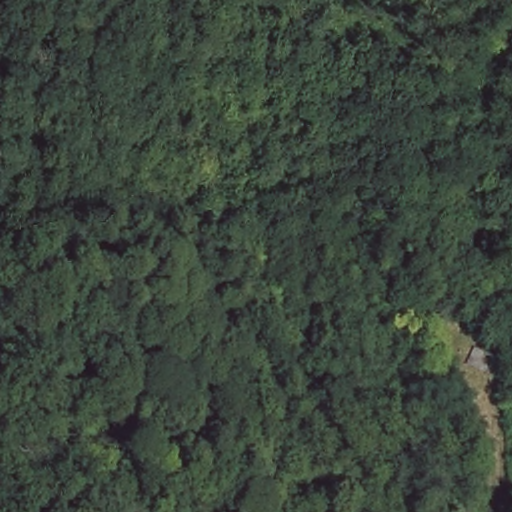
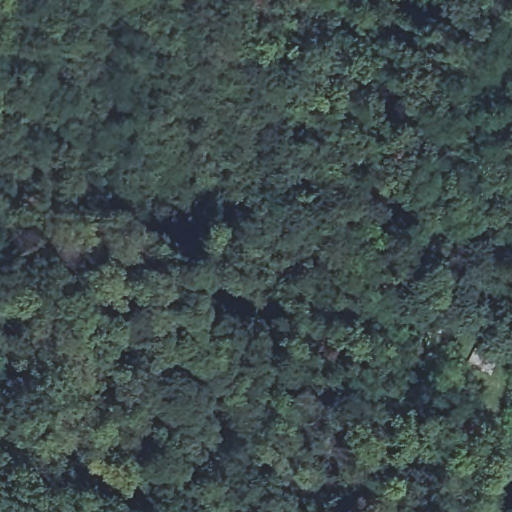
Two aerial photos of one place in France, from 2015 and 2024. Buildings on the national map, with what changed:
unchanged [(352,291),(346,294),(343,287),(349,284),(352,291)]

